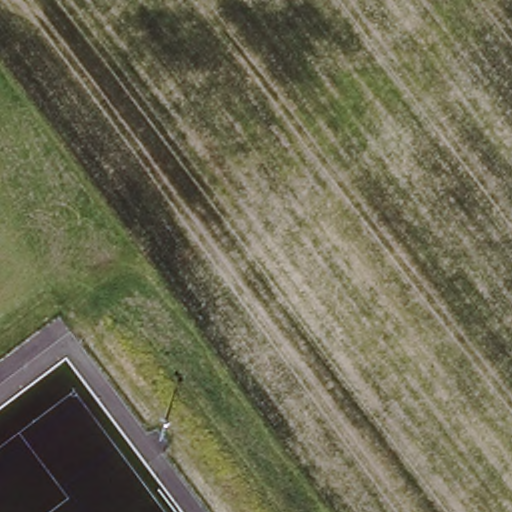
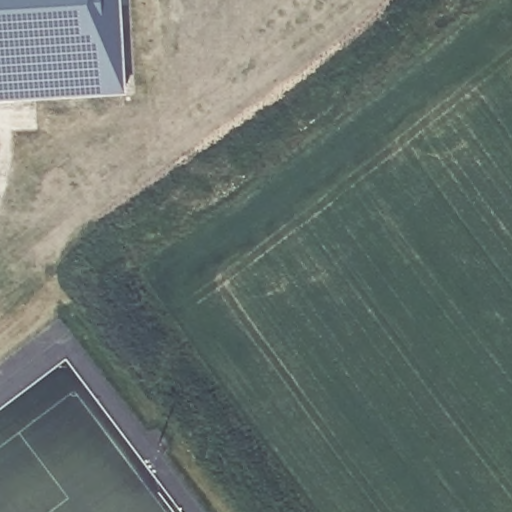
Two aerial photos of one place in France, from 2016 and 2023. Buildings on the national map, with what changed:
new [(120,0),(126,87),(0,96),(0,0),(120,0)]

